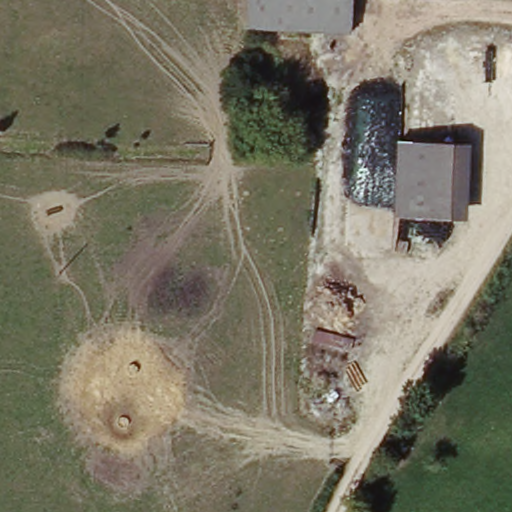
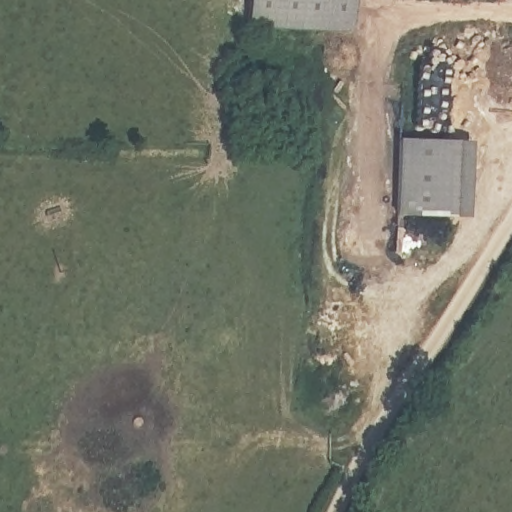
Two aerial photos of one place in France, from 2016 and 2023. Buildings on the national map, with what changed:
unchanged [(352,27),(251,27),(252,0),(353,0),(352,27)]
unchanged [(397,211),(401,137),(468,142),(470,214),(397,211)]

